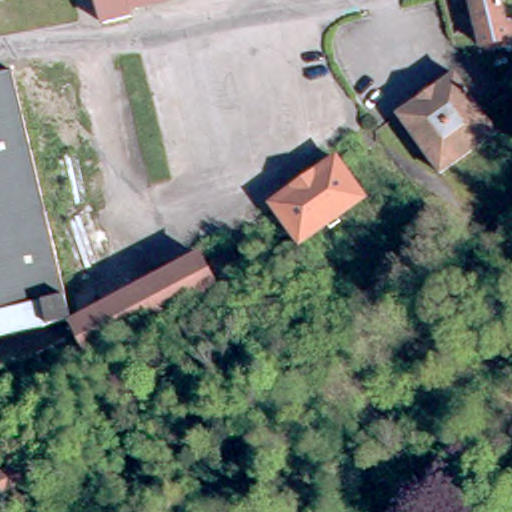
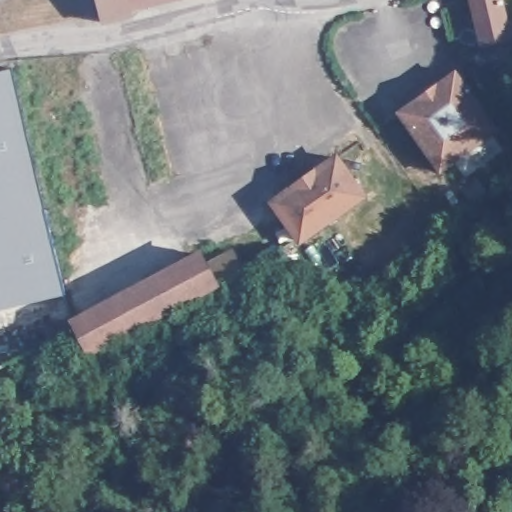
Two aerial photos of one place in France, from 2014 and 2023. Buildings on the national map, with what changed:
unchanged [(122,11),(124,19),(95,26),(89,0),(166,0),(122,11)]
unchanged [(504,17),(508,33),(475,41),(466,0),(493,0),(497,19),(504,17)]
unchanged [(490,127),(435,169),(392,110),(450,70),(476,107),(490,127)]
unchanged [(19,105),(37,176),(46,214),(47,214),(70,310),(72,322),(0,339),(0,78),(12,76),(19,105)]
unchanged [(286,221),(268,197),(330,153),(331,154),(358,191),(330,207),(334,214),(323,221),(320,216),(294,234),(285,222),(286,221)]
unchanged [(91,357),(81,338),(76,327),(202,260),(208,271),(235,257),(245,275),(91,357)]
unchanged [(0,470),(20,465),(29,494),(2,496),(0,488),(0,470)]

